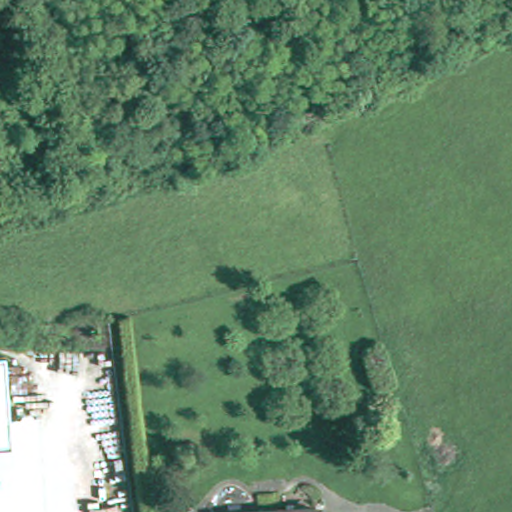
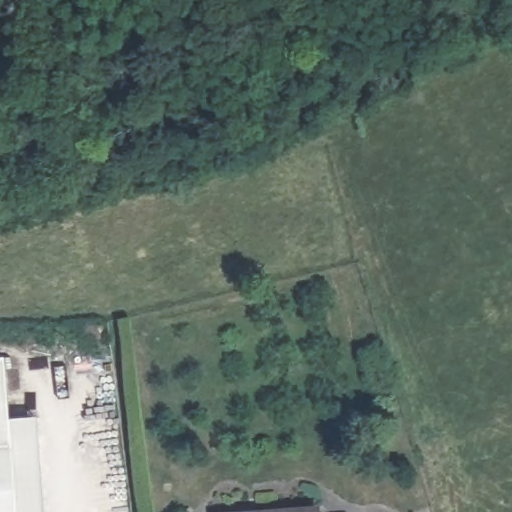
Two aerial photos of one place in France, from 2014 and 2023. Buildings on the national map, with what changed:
unchanged [(0,512),(0,357),(12,356),(15,418),(21,512),(0,512)]
unchanged [(45,512),(21,512),(15,418),(40,418),(45,512)]
unchanged [(316,502),(317,512),(218,512),(218,509),(316,502)]

